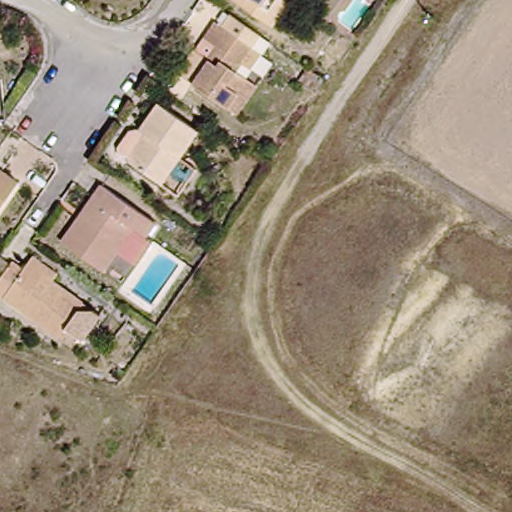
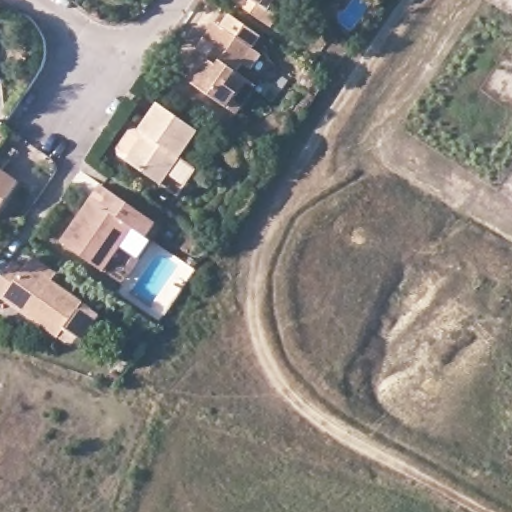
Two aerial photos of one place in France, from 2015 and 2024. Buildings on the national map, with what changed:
unchanged [(236,4),(238,0),(285,0),(284,1),(293,7),(283,22),(277,32),(236,4)]
unchanged [(238,124),(232,120),(193,94),(209,70),(218,58),(204,48),(215,32),(252,59),(236,81),(247,90),(257,96),(238,124)]
unchanged [(119,165),(117,159),(130,140),(137,139),(140,140),(158,114),(198,141),(161,195),(121,167),(119,165)]
unchanged [(13,183),(0,202),(0,174),(13,183)]
unchanged [(155,232),(146,246),(133,237),(103,281),(62,253),(101,195),(155,232)]
unchanged [(152,250),(123,294),(103,281),(133,237),(146,246),(152,250)]
unchanged [(12,276),(24,285),(28,279),(33,272),(57,289),(52,296),(83,317),(59,352),(0,312),(0,294),(12,276)]

